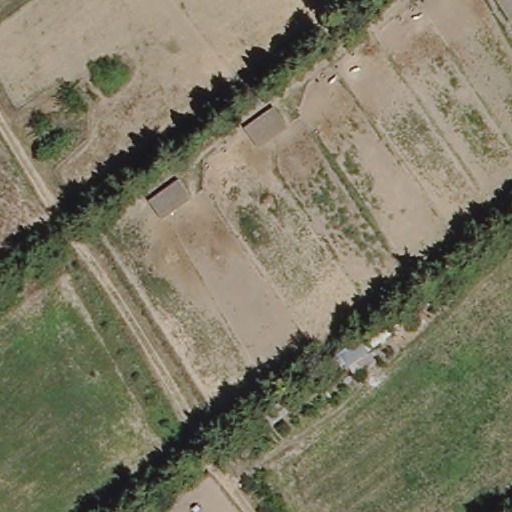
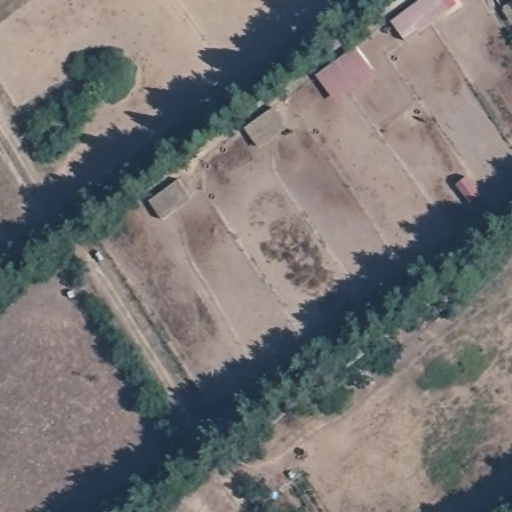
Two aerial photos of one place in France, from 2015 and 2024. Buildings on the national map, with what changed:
new [(407,41),(392,20),(418,0),(455,0),(458,3),(407,41)]
new [(356,46),(376,75),(337,104),(316,75),(356,46)]

